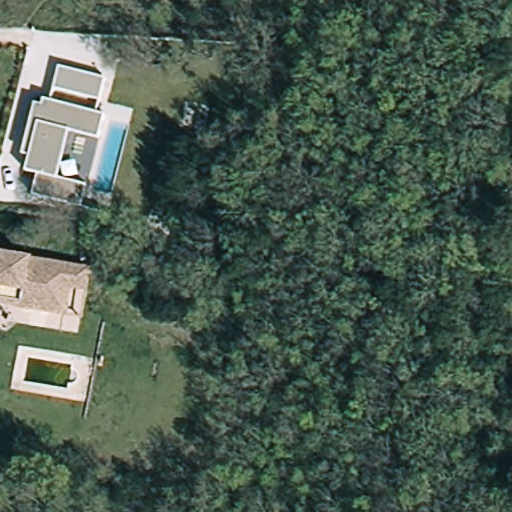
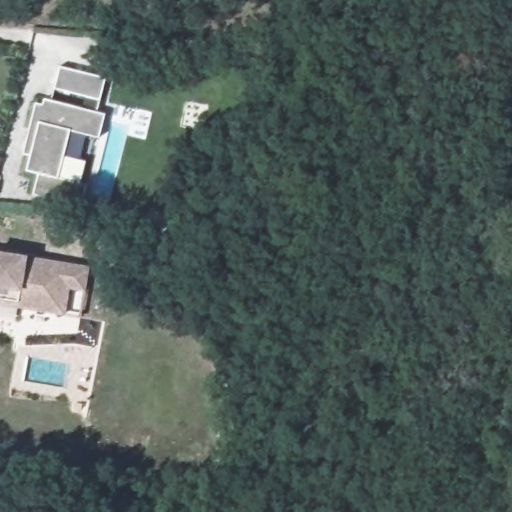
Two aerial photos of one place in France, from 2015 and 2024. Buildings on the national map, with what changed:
unchanged [(112,68),(102,102),(110,104),(103,128),(74,119),(61,165),(90,174),(84,195),(36,181),(42,161),(29,158),(41,117),(34,115),(41,90),(48,92),(50,86),(56,88),(66,54),(112,68)]
unchanged [(84,293),(80,316),(65,313),(0,302),(0,253),(89,269),(84,293)]

